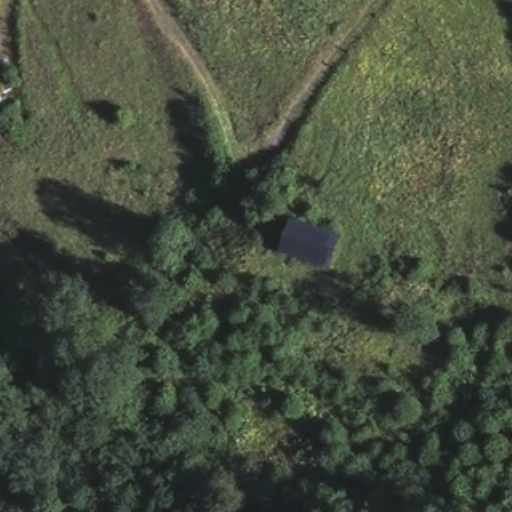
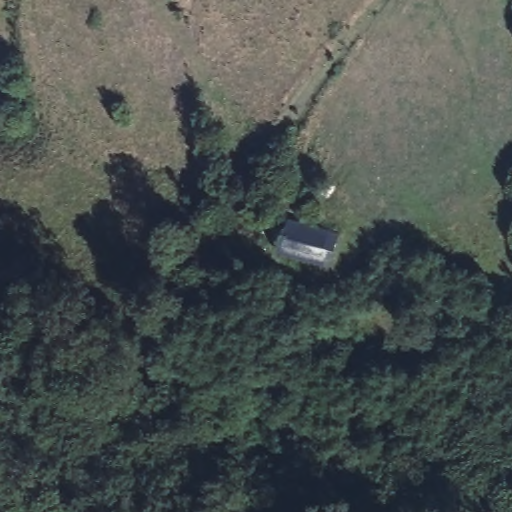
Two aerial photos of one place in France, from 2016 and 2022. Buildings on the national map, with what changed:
unchanged [(274,242),(289,215),(335,240),(319,266),(274,242)]

